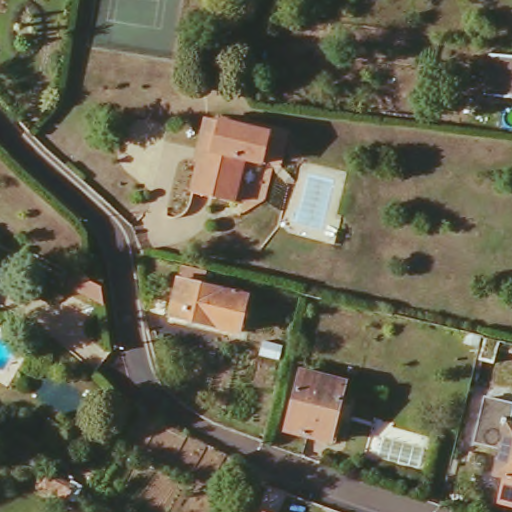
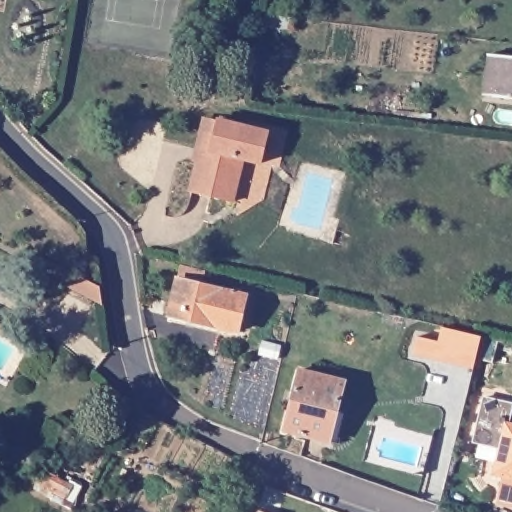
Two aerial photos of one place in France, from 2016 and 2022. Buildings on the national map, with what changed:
unchanged [(265,15),(294,19),(293,30),(262,27),(265,15)]
unchanged [(488,55),(512,57),(512,98),(483,95),(488,55)]
unchanged [(205,130),(213,132),(217,120),(269,131),(262,162),(243,159),(233,202),(191,191),(205,130)]
unchanged [(200,269),(197,278),(175,272),(177,264),(200,269)]
unchanged [(67,272),(98,288),(103,290),(97,303),(62,284),(67,272)]
unchanged [(173,278),(242,295),(233,331),(165,314),(173,278)]
new [(417,336),(439,342),(442,327),(482,336),(474,368),(413,353),(417,336)]
unchanged [(297,372),(340,384),(335,401),(340,403),(329,443),(282,430),(297,372)]
unchanged [(483,410),(510,416),(508,425),(512,426),(512,489),(493,485),(500,459),(473,453),(483,410)]
unchanged [(7,443),(37,456),(33,465),(4,453),(7,443)]
unchanged [(40,484),(45,473),(70,486),(65,497),(40,484)]

